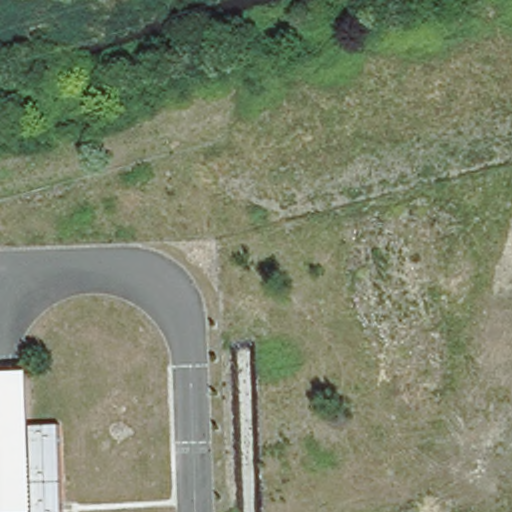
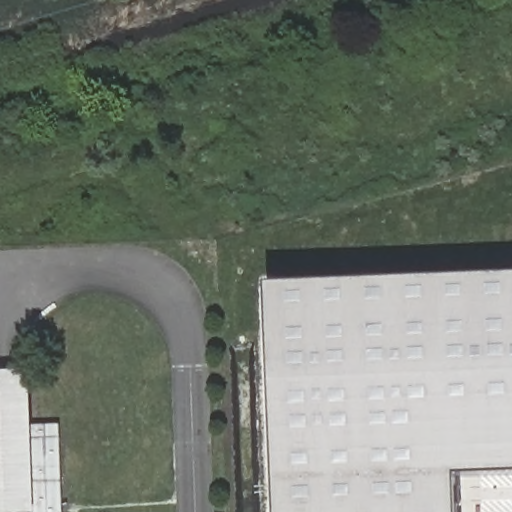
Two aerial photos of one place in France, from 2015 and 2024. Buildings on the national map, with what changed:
new [(512,475),(457,477),(459,512),(278,512),(269,286),(512,276),(512,475)]
unchanged [(31,371),(37,512),(0,512),(0,372),(31,371)]

